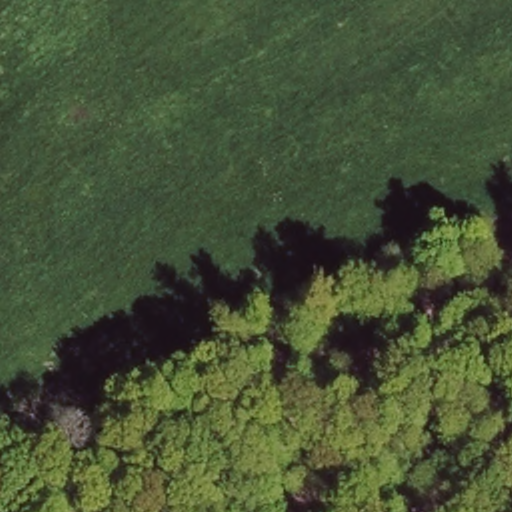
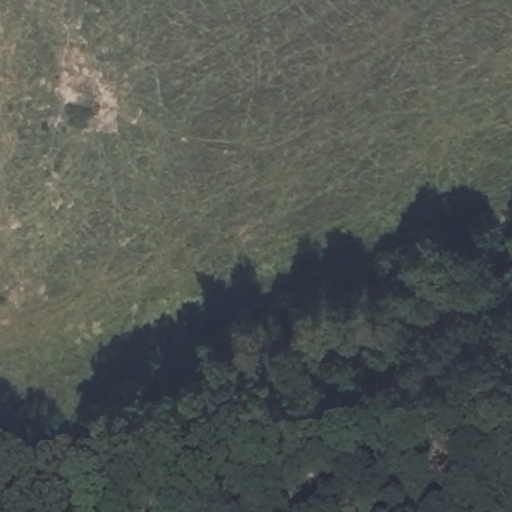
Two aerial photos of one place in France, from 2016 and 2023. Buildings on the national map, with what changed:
[]

